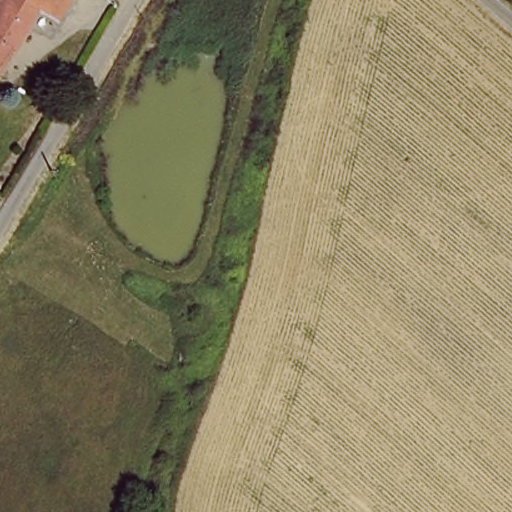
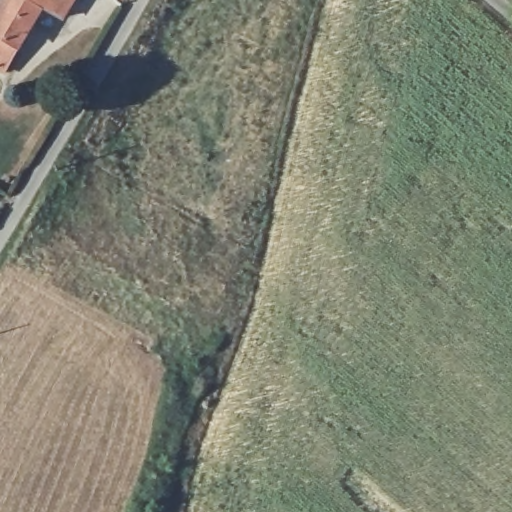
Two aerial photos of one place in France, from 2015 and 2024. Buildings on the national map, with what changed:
unchanged [(65,26),(40,14),(8,72),(0,67),(0,0),(12,7),(16,0),(79,0),(65,26)]

